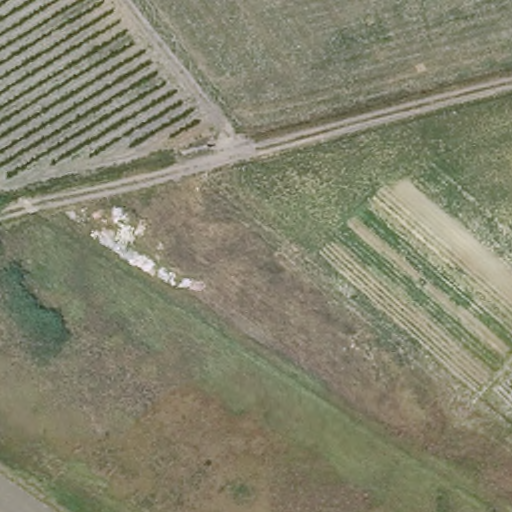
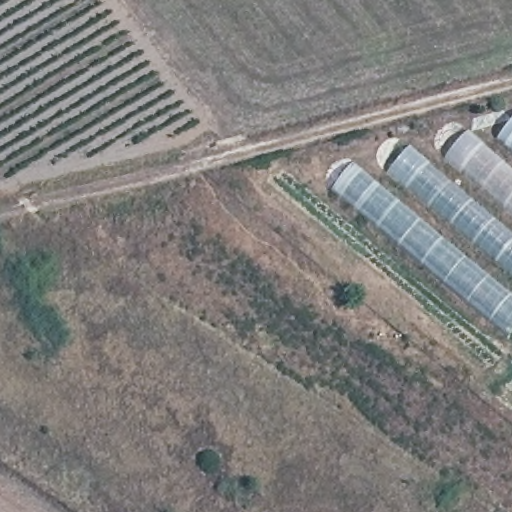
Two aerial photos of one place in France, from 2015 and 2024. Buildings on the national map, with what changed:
new [(498,139),(512,122),(512,152),(498,139)]
new [(512,167),(512,213),(448,157),(471,131),(512,167)]
new [(512,233),(512,275),(388,171),(409,147),(512,233)]
new [(512,294),(512,331),(508,336),(331,188),(351,164),(512,294)]

